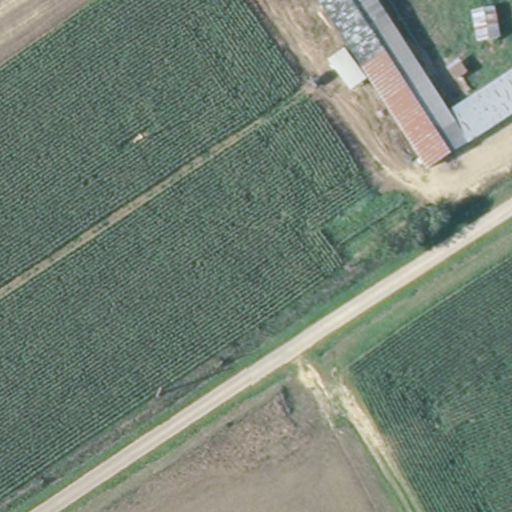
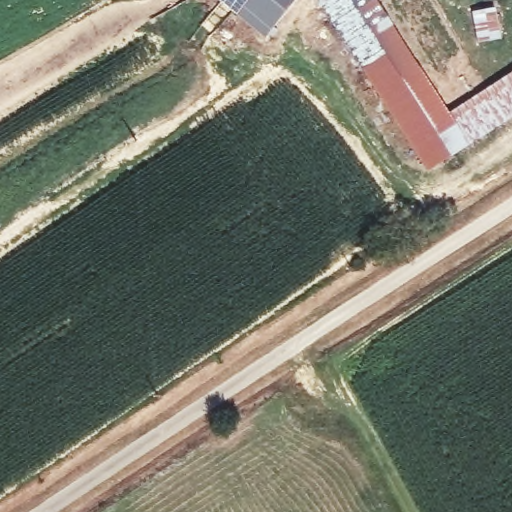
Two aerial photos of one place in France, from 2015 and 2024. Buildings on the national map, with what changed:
new [(221,0),(298,0),(267,36),(221,0)]
unchanged [(319,1),(321,0),(379,0),(453,111),(512,68),(512,119),(431,169),(319,1)]

